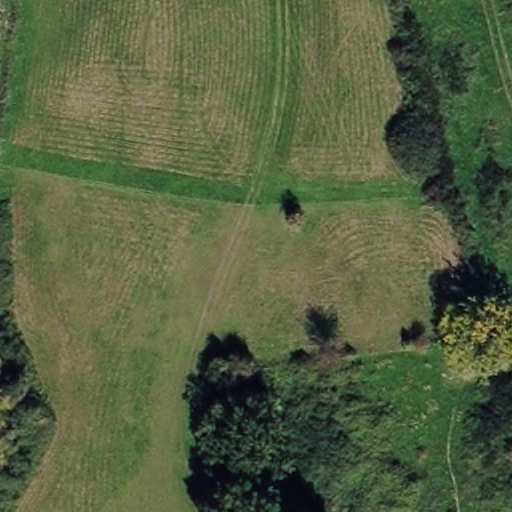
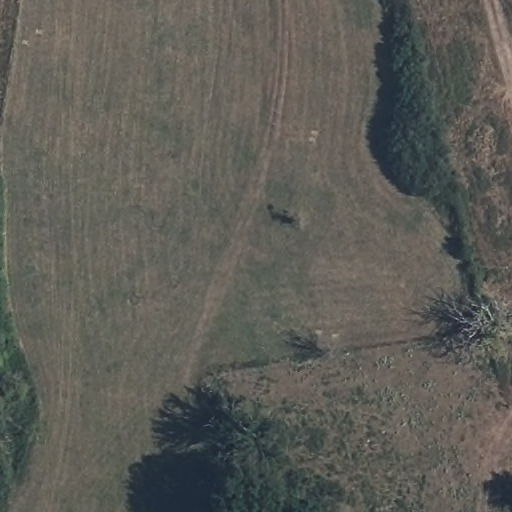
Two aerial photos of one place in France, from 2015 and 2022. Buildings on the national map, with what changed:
[]

